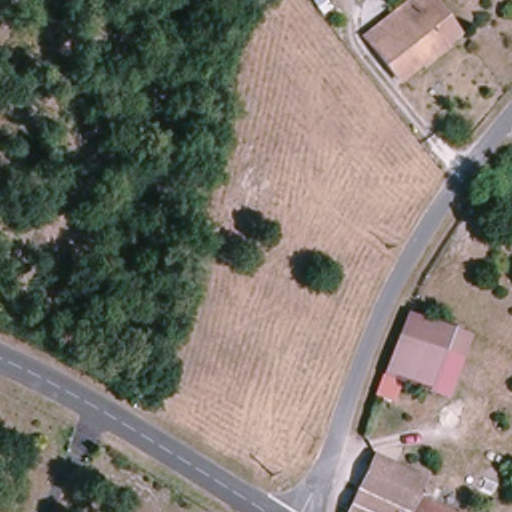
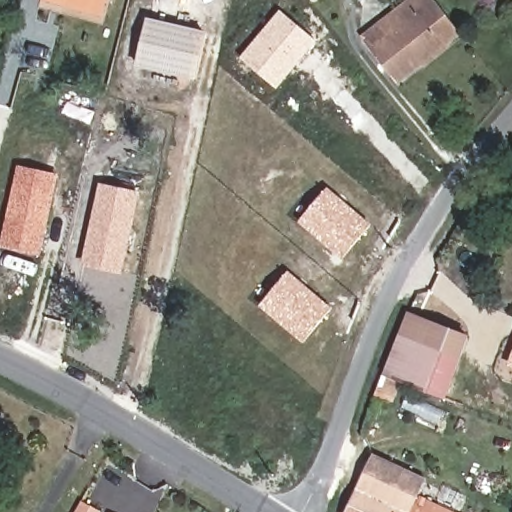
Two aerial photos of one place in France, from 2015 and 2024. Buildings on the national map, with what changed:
new [(41,0),(110,0),(104,25),(39,6),(41,0)]
unchanged [(417,66),(396,80),(366,40),(422,0),(430,0),(456,35),(440,46),(445,52),(422,72),(417,66)]
new [(278,89),(240,57),(280,10),(318,41),(278,89)]
new [(146,17),(208,31),(196,81),(135,66),(146,17)]
new [(41,256),(0,247),(18,165),(59,174),(41,256)]
new [(123,275),(82,265),(100,182),(141,191),(123,275)]
new [(372,224),(343,259),(300,224),(330,189),(372,224)]
new [(258,305),(288,271),(333,308),(304,342),(258,305)]
unchanged [(386,375),(410,312),(439,323),(416,386),(386,375)]
unchanged [(449,397),(416,386),(439,323),(473,335),(449,397)]
new [(512,354),(512,368),(507,366),(512,354)]
unchanged [(371,457),(419,481),(414,496),(446,512),(345,512),(371,457)]

